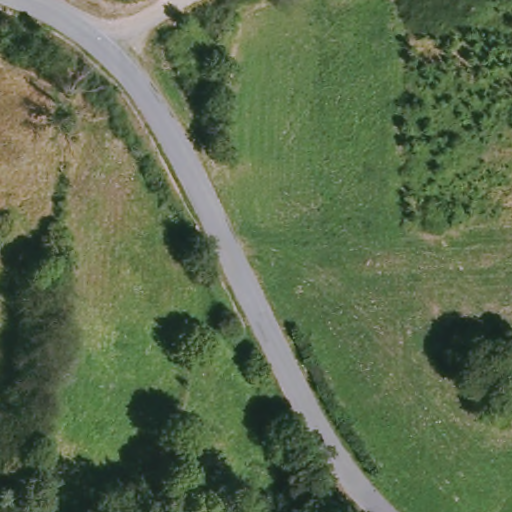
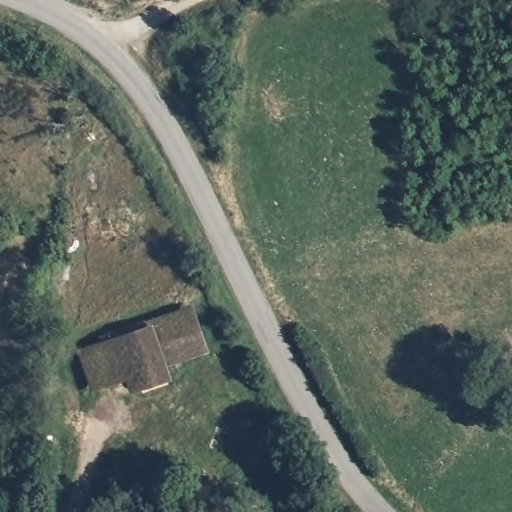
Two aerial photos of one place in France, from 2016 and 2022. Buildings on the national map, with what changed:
new [(167,363),(172,379),(133,392),(129,381),(93,393),(79,349),(154,324),(155,327),(191,317),(202,351),(167,363)]

